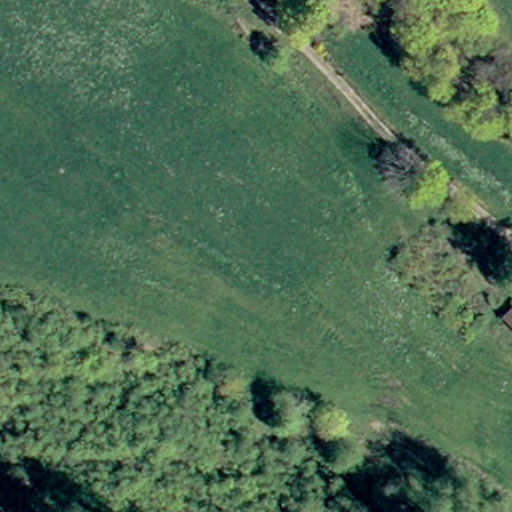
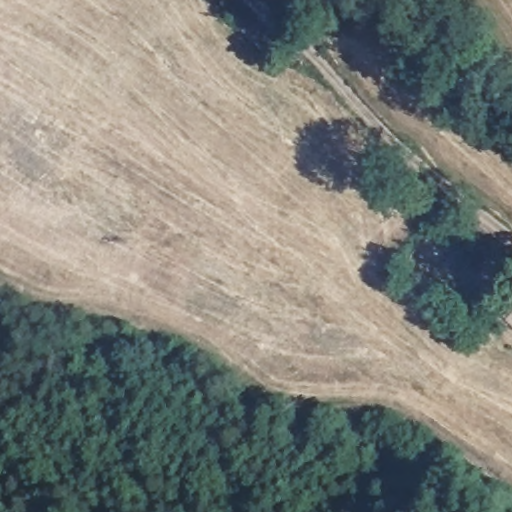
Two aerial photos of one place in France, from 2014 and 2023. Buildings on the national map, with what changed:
unchanged [(505,316),(512,309),(512,324),(505,316)]

